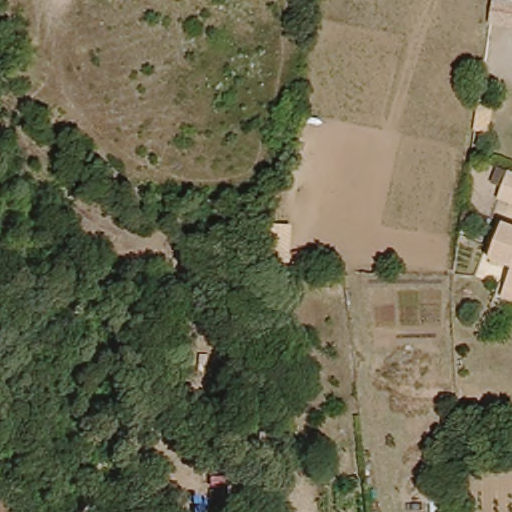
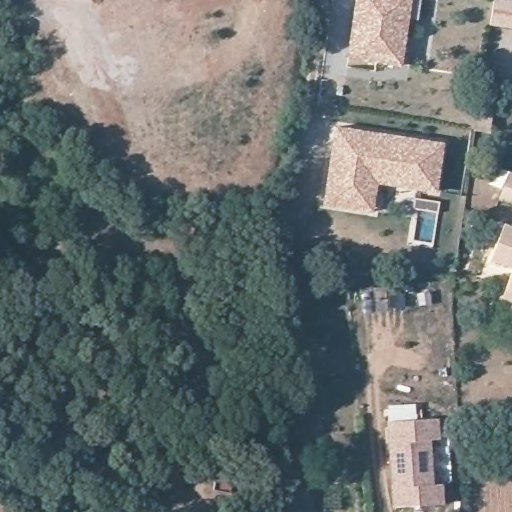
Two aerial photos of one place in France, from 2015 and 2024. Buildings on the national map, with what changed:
new [(347,57),(355,0),(413,0),(404,65),(347,57)]
unchanged [(494,30),(497,0),(502,0),(512,1),(512,32),(494,30)]
unchanged [(493,110),(489,135),(475,132),(478,108),(493,110)]
new [(336,125),(446,142),(438,193),(378,184),(375,212),(324,205),(336,125)]
unchanged [(512,175),(512,206),(505,204),(512,175)]
unchanged [(482,281),(502,223),(512,227),(512,292),(482,281)]
new [(394,506),(388,421),(439,418),(440,437),(432,438),(436,485),(445,483),(446,503),(394,506)]

